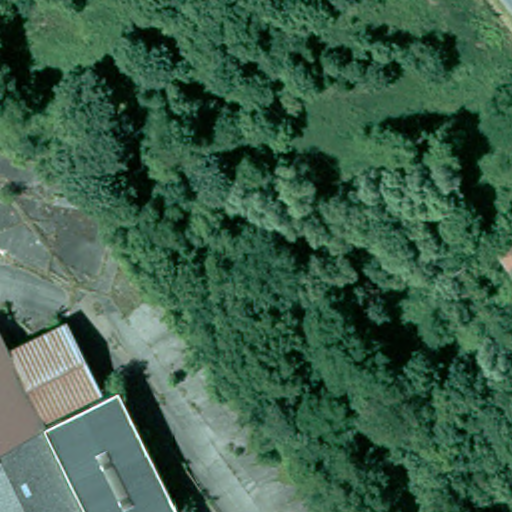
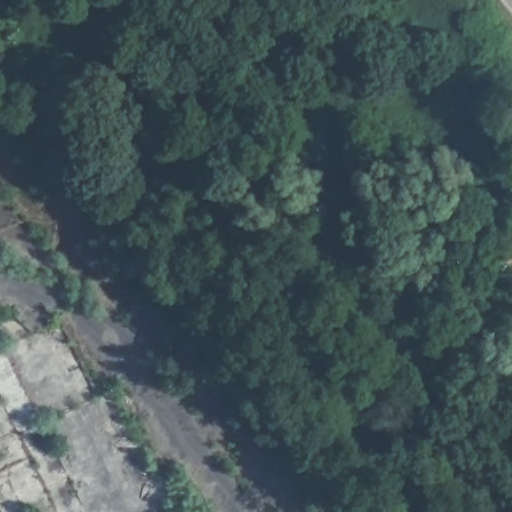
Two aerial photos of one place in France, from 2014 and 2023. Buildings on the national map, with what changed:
unchanged [(495,249),(510,238),(507,234),(512,230),(512,273),(495,249)]
demolished [(178,512),(0,512),(0,331),(9,349),(45,423),(99,397),(117,388),(178,512)]

